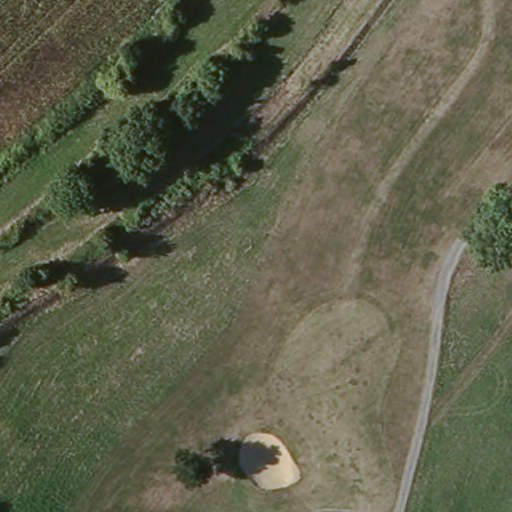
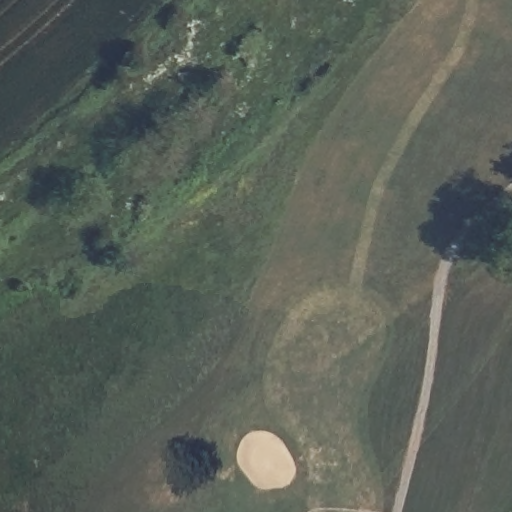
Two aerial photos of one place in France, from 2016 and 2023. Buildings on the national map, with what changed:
[]

